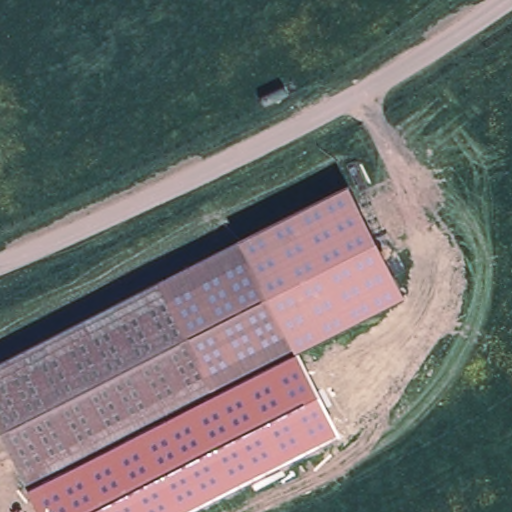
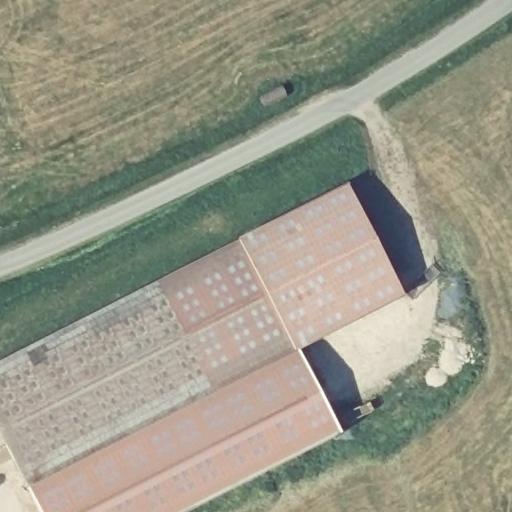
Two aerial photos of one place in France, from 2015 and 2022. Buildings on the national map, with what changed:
unchanged [(240,243),(347,189),(402,297),(296,352),(240,243)]
unchanged [(159,284),(240,243),(296,352),(215,394),(159,284)]
unchanged [(27,490),(0,437),(0,366),(159,284),(215,394),(27,490)]
unchanged [(38,512),(27,490),(215,394),(296,352),(340,434),(188,512),(38,512)]

